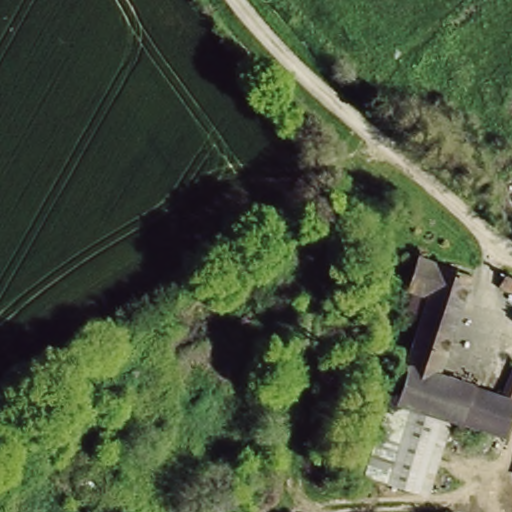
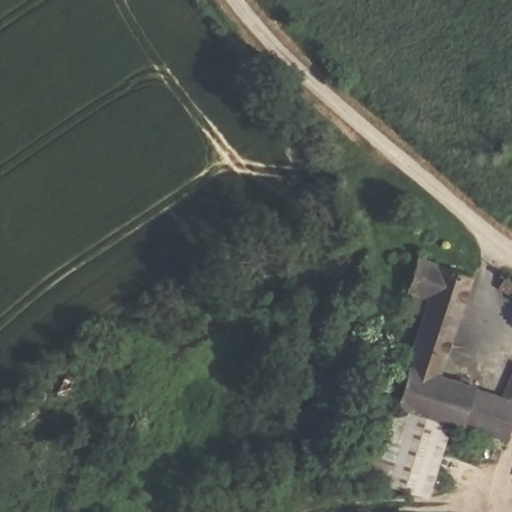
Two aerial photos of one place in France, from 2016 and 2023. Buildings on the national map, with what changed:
unchanged [(428,293),(408,287),(421,249),(475,272),(439,377),(503,395),(512,373),(512,437),(511,442),(451,426),(399,409),(428,293)]
unchanged [(506,276),(512,279),(512,296),(499,288),(506,276)]
unchanged [(426,496),(366,475),(384,406),(399,409),(451,426),(426,496)]

